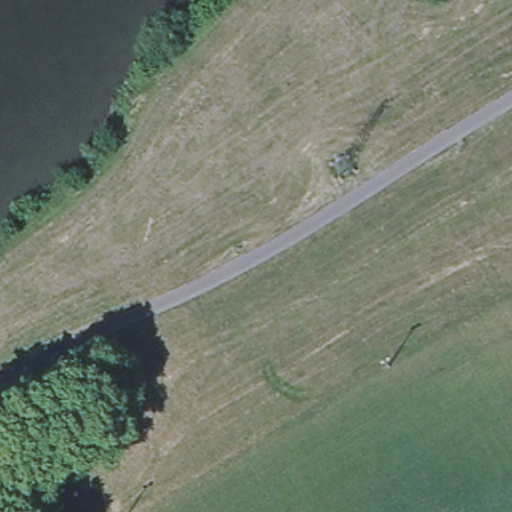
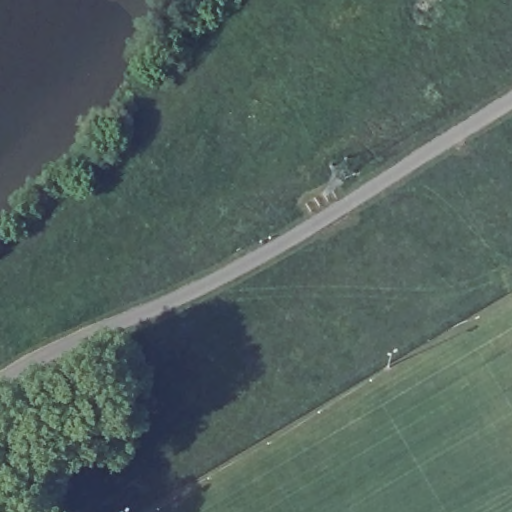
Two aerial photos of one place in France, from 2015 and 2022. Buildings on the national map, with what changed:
[]

